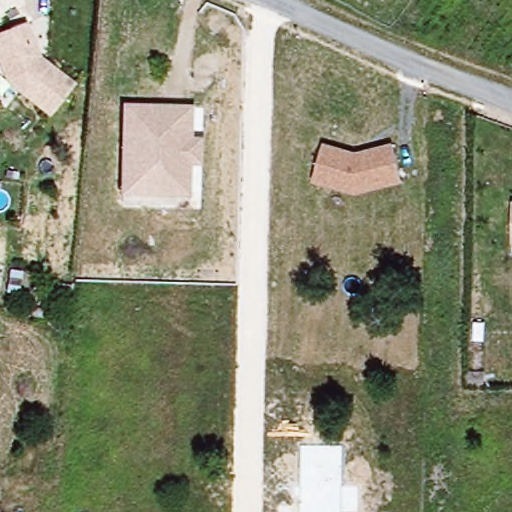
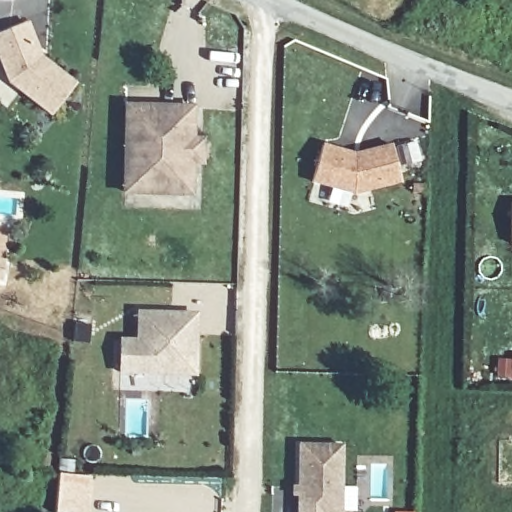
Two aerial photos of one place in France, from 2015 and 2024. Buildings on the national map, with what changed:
unchanged [(39,54),(75,85),(49,115),(8,79),(0,59),(0,32),(26,22),(39,54)]
unchanged [(122,103),(195,104),(194,136),(204,136),(203,166),(193,166),(193,195),(120,194),(122,103)]
unchanged [(321,141),(352,151),(391,143),(401,184),(353,194),(310,182),(321,141)]
unchanged [(512,199),(512,240),(507,240),(508,199),(512,199)]
new [(138,340),(139,312),(188,314),(197,313),(196,331),(195,374),(120,372),(121,339),(138,340)]
new [(512,441),(512,483),(498,483),(498,441),(512,441)]
new [(297,512),(298,444),(341,446),(341,489),(354,488),(353,512),(297,512)]
new [(89,477),(86,512),(56,512),(59,476),(89,477)]

